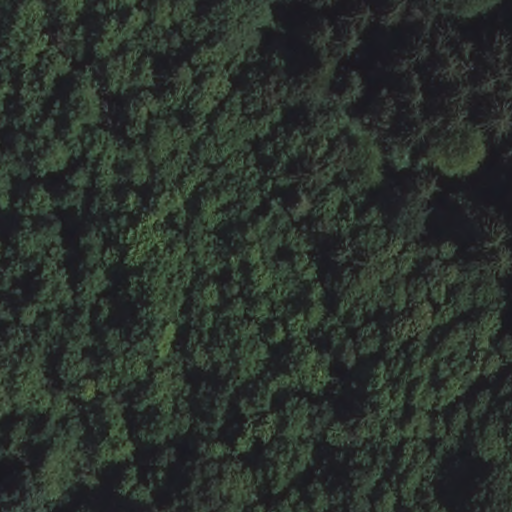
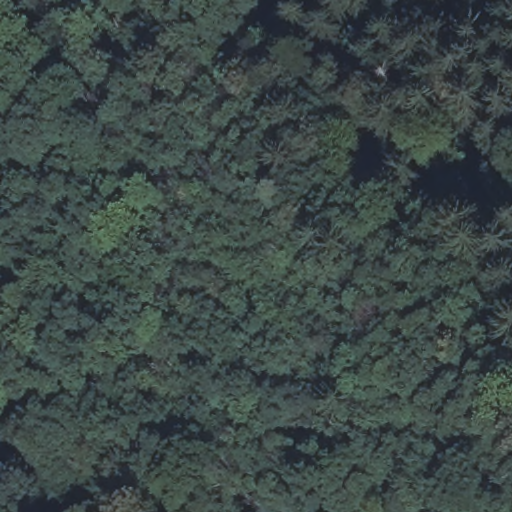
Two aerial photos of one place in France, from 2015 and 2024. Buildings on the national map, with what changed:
[]

